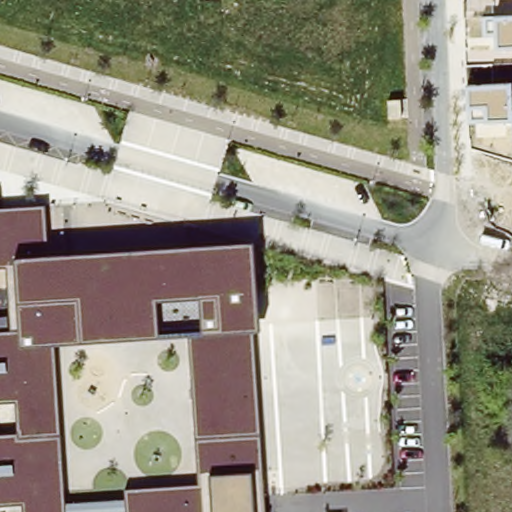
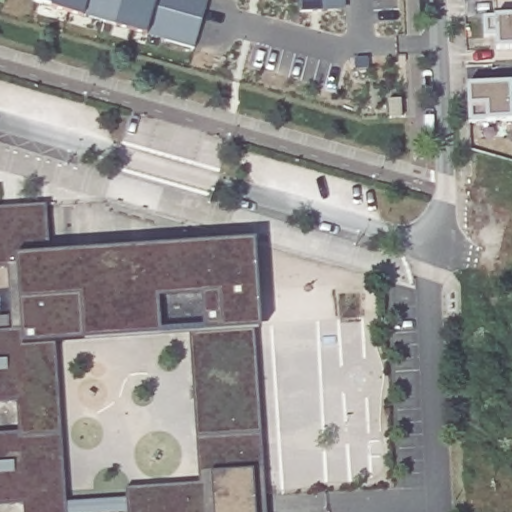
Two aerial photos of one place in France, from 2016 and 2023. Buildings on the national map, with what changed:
new [(193,48),(147,34),(50,8),(51,5),(32,0),(207,0),(193,48)]
new [(345,10),(299,11),(299,0),(344,0),(345,10)]
unchanged [(495,35),(484,35),(483,17),(512,15),(512,46),(496,47),(495,35)]
unchanged [(470,87),(511,84),(512,90),(512,119),(471,121),(470,87)]
unchanged [(0,501),(0,434),(21,433),(19,396),(0,398),(0,328),(22,325),(17,259),(0,261),(0,208),(45,205),(50,256),(255,240),(255,241),(262,327),(252,332),(266,512),(129,512),(128,510),(107,512),(26,512),(25,499),(0,501)]

